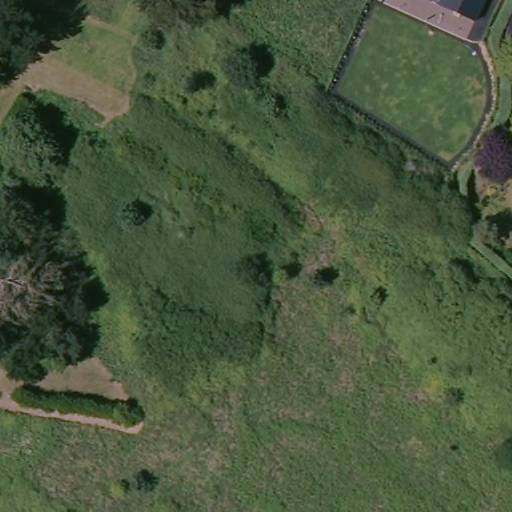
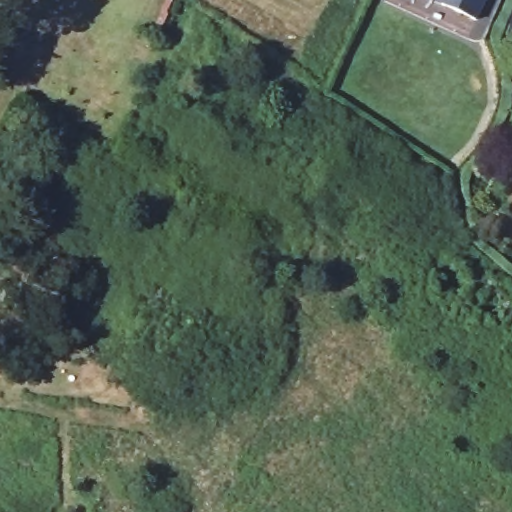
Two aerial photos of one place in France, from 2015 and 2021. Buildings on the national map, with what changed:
unchanged [(478,21),(437,2),(438,0),(487,0),(478,21)]

